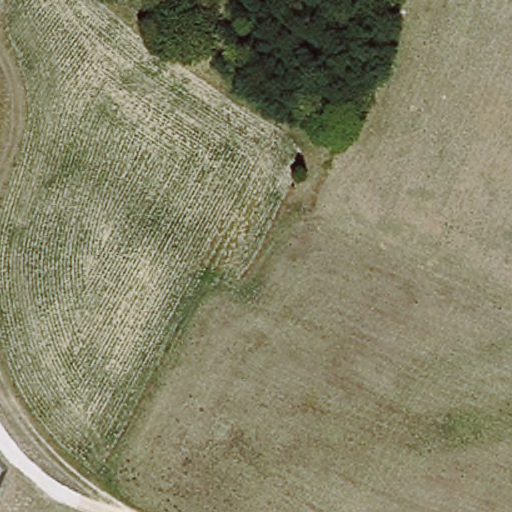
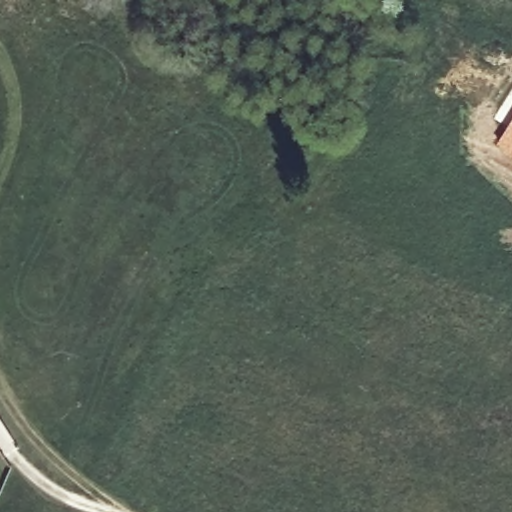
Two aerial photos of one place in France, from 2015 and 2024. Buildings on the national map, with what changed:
new [(512,157),(493,146),(512,116),(512,157)]

